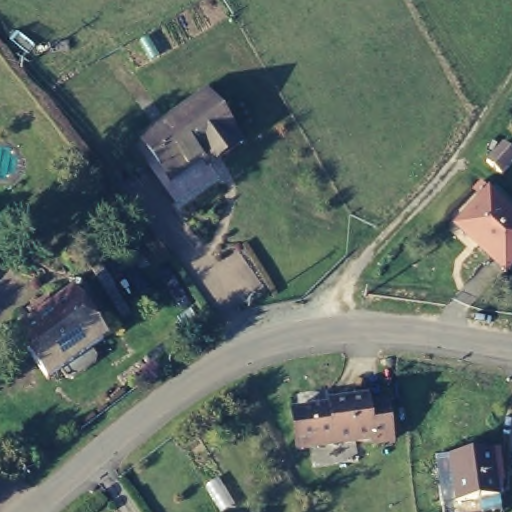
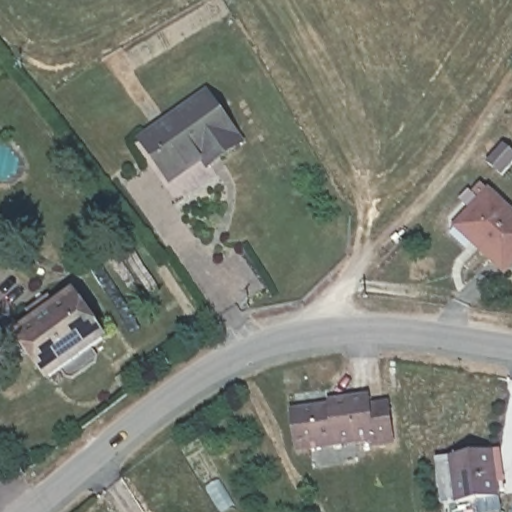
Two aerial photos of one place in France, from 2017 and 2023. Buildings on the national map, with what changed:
unchanged [(197,154),(163,177),(148,155),(135,136),(143,130),(198,90),(201,87),(233,131),(238,137),(228,145),(205,162),(199,156),(197,154)]
unchanged [(485,183),(512,209),(512,257),(502,270),(487,256),(490,250),(457,220),(485,183)]
unchanged [(30,323),(23,313),(44,298),(51,306),(68,295),(98,340),(90,347),(93,356),(93,364),(72,380),(62,378),(57,370),(43,380),(12,336),(30,323)]
unchanged [(334,406),(333,401),(372,401),(372,409),(390,407),(393,442),(375,443),(375,439),(300,446),(296,407),(334,406)]
unchanged [(493,451),(497,498),(455,504),(447,458),(493,451)]

